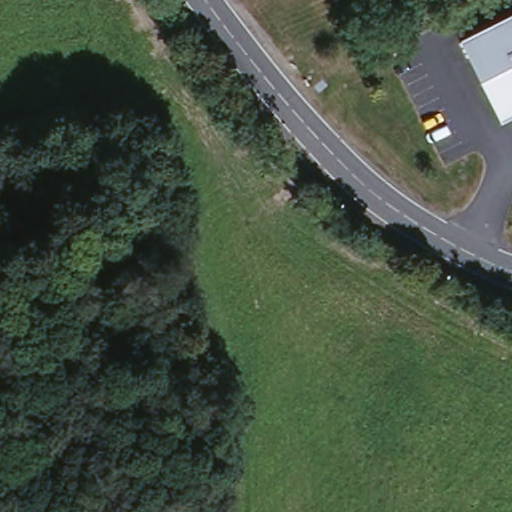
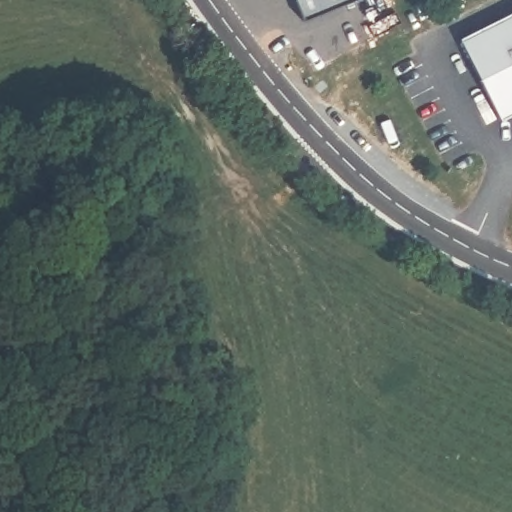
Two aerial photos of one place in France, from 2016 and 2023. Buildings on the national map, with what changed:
new [(293,0),(350,0),(301,20),(293,0)]
unchanged [(512,114),(503,119),(463,31),(512,8),(512,114)]

